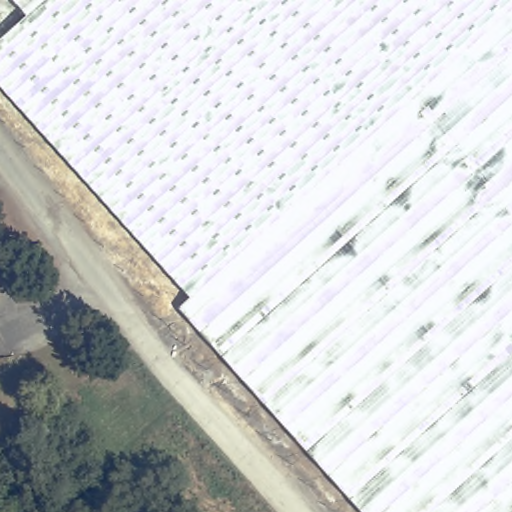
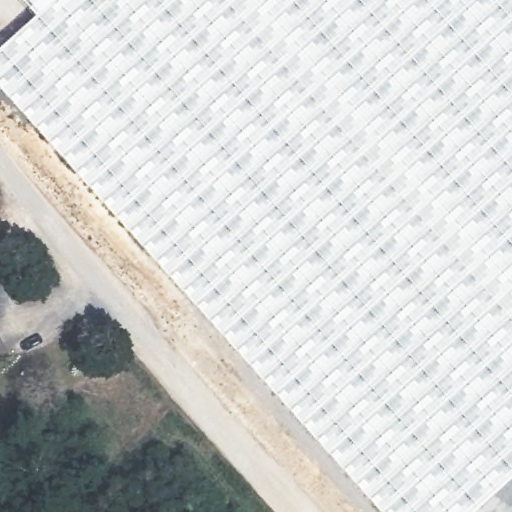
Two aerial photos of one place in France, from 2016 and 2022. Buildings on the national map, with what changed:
unchanged [(188,313),(198,304),(0,87),(0,50),(31,22),(12,0),(512,0),(512,512),(366,512),(188,313)]

